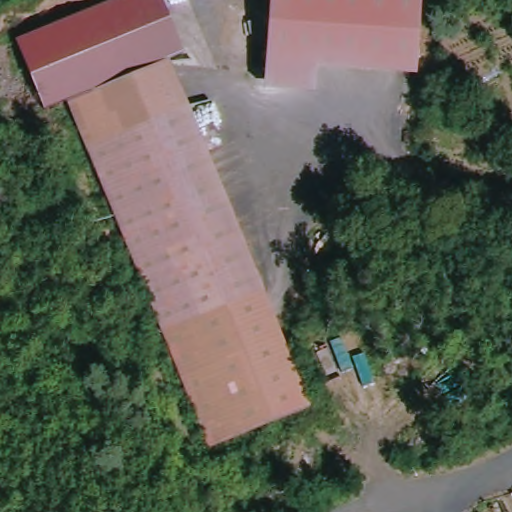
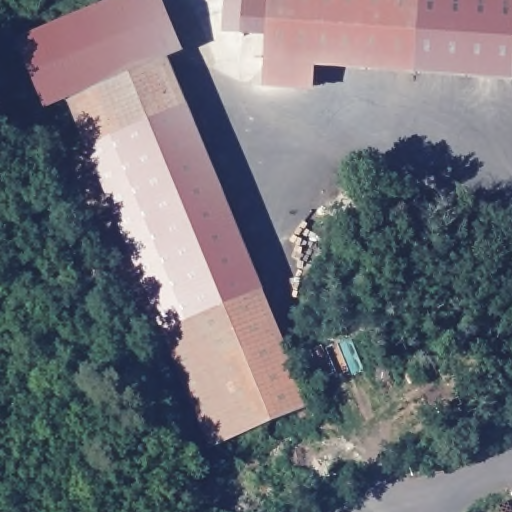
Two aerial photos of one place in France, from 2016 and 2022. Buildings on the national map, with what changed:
unchanged [(310,407),(207,448),(66,101),(45,109),(16,40),(113,0),(162,0),(183,52),(170,59),(310,407)]
unchanged [(267,63),(272,0),(423,0),(416,76),(267,63)]
new [(512,0),(512,83),(416,76),(423,0),(512,0)]

